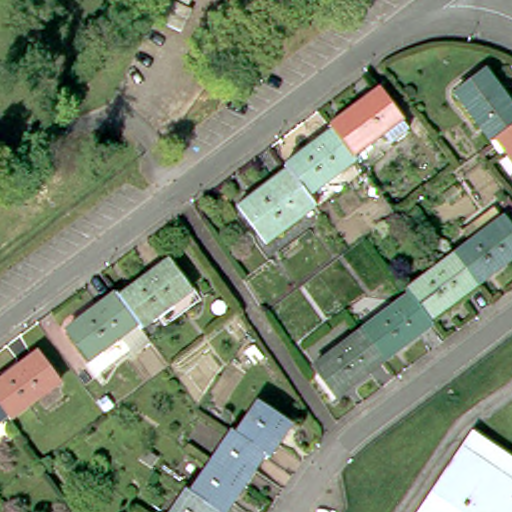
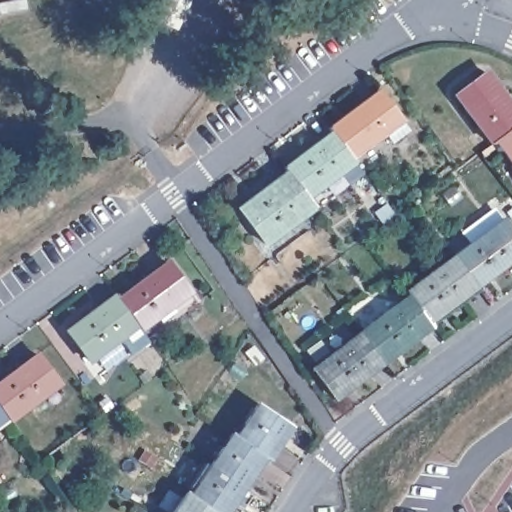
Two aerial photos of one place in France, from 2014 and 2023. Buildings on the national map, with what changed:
unchanged [(495,140),(491,142),(456,94),(486,72),(512,108),(512,127),(495,140)]
unchanged [(328,129),(377,95),(400,124),(351,160),(332,134),(328,129)]
unchanged [(495,140),(512,127),(512,163),(495,140)]
unchanged [(332,134),(351,160),(355,164),(305,200),(286,175),(283,170),(332,134)]
unchanged [(259,240),(237,211),(286,175),(305,200),(308,204),(259,240)]
unchanged [(456,256),(504,221),(512,232),(512,262),(478,286),(456,256)]
unchanged [(407,291),(456,256),(478,286),(430,321),(411,297),(407,291)]
unchanged [(139,322),(120,296),(168,261),(190,291),(142,326),(139,322)]
unchanged [(120,296),(139,322),(90,357),(69,327),(117,292),(120,296)]
unchanged [(361,332),(411,297),(430,321),(433,326),(383,362),(361,332)]
unchanged [(333,397),(312,367),(361,332),(383,362),(333,397)]
unchanged [(0,402),(0,379),(37,351),(60,381),(11,417),(8,413),(0,402)]
unchanged [(0,420),(0,402),(8,413),(0,420)]
unchanged [(265,454),(238,437),(260,405),(291,426),(270,457),(265,454)]
unchanged [(233,433),(238,437),(265,454),(243,486),(212,464),(233,433)]
demolished [(421,512),(473,437),(512,463),(512,512),(421,512)]
unchanged [(226,512),(216,512),(190,495),(212,464),(243,486),(226,512)]
unchanged [(216,512),(173,512),(186,492),(190,495),(216,512)]

